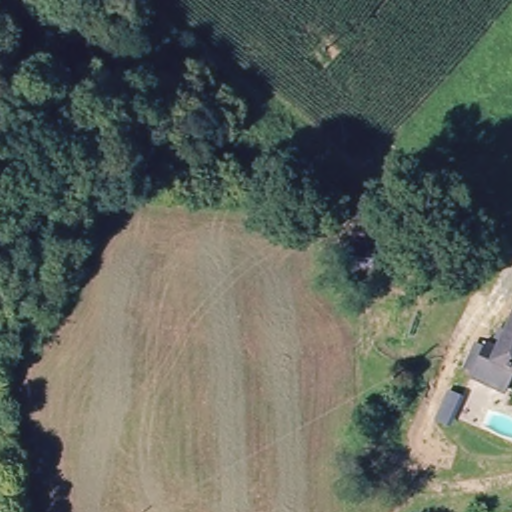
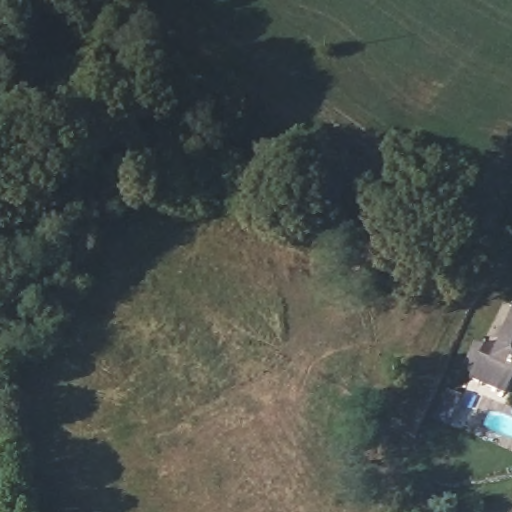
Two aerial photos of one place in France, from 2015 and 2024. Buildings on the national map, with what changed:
unchanged [(498,354),(512,321),(512,387),(507,400),(473,386),(475,380),(466,377),(470,368),(477,352),(485,356),(488,350),(498,354)]
unchanged [(447,397),(457,401),(459,402),(448,428),(444,427),(436,423),(447,397)]

